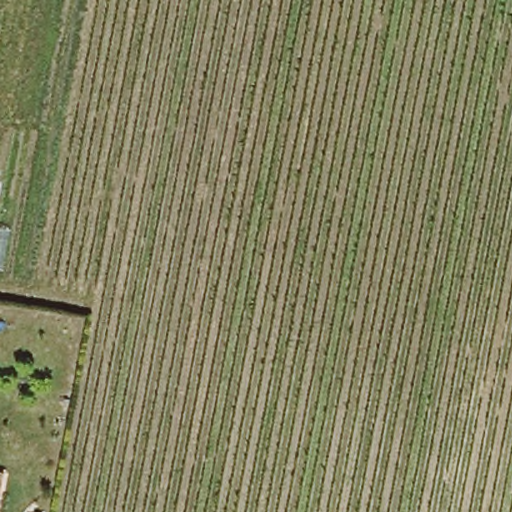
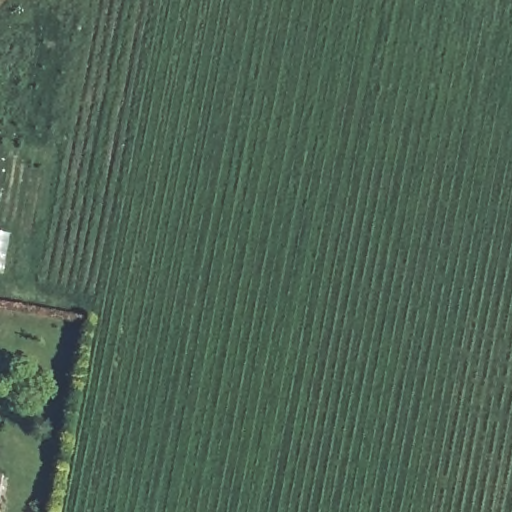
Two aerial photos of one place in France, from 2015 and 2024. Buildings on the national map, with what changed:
unchanged [(0,511),(0,476),(6,477),(0,511)]

